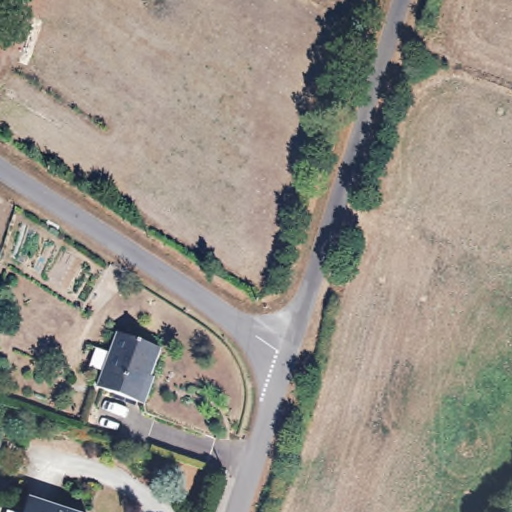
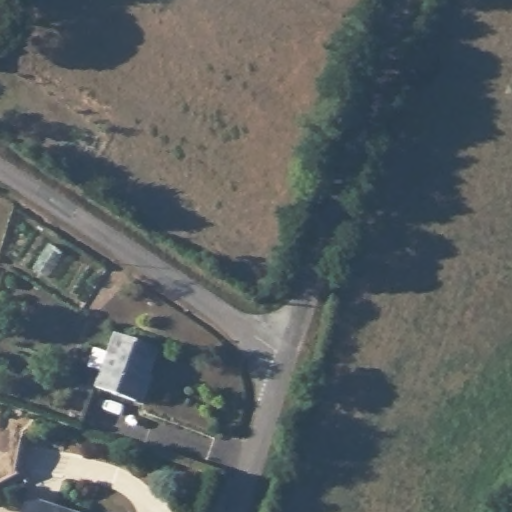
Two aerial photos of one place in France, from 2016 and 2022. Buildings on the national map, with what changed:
unchanged [(144,403),(138,400),(98,385),(118,331),(162,347),(151,375),(155,377),(144,403)]
unchanged [(32,494),(82,512),(26,512),(32,494)]

